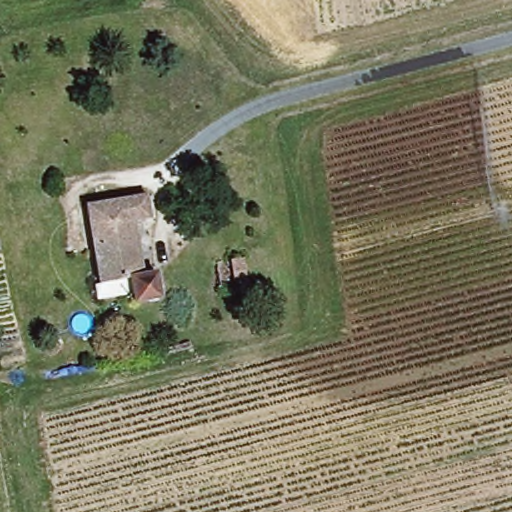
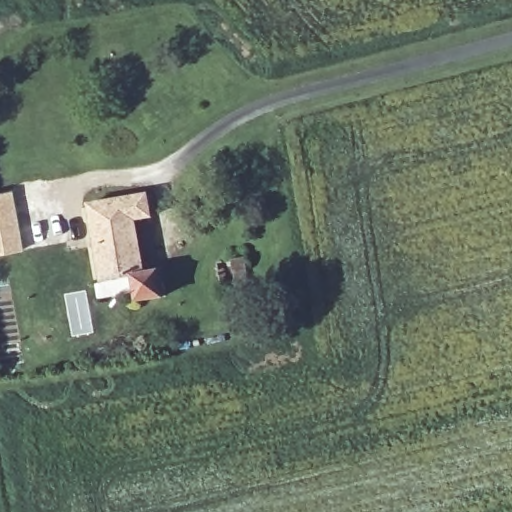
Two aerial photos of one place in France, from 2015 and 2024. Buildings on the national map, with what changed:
new [(11,189),(22,250),(0,255),(0,191),(11,189)]
unchanged [(156,275),(157,292),(130,294),(129,279),(95,283),(87,205),(148,198),(150,218),(134,219),(139,263),(155,260),(156,275)]
unchanged [(231,299),(227,279),(246,274),(251,294),(231,299)]

